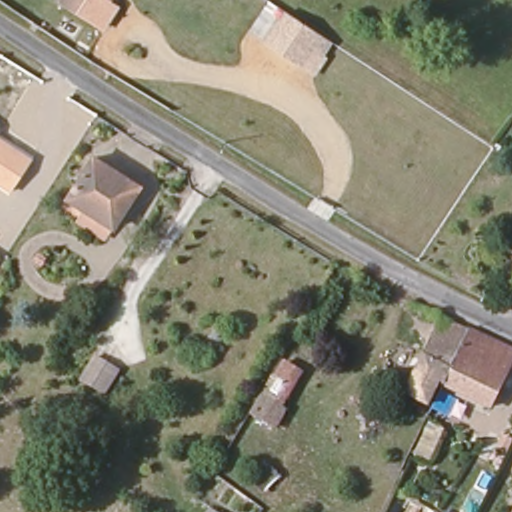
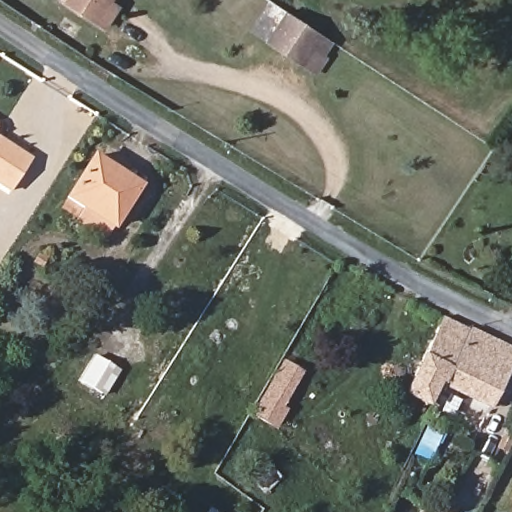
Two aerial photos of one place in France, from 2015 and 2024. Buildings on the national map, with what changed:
unchanged [(107,5),(120,14),(106,31),(62,0),(111,0),(107,5)]
unchanged [(324,37),(305,66),(269,43),(289,15),(324,37)]
unchanged [(32,162),(12,192),(0,183),(0,141),(32,162)]
unchanged [(95,159),(140,188),(115,226),(71,198),(95,159)]
unchanged [(512,297),(512,304),(509,303),(512,297)]
unchanged [(472,328),(447,379),(438,374),(432,383),(432,385),(424,398),(407,388),(444,314),(472,328)]
unchanged [(512,360),(490,402),(447,379),(472,328),(512,346),(512,360)]
unchanged [(95,355),(119,369),(105,393),(81,378),(95,355)]
unchanged [(298,368),(280,404),(287,408),(276,428),(252,412),(260,400),(253,396),(257,388),(263,391),(281,359),(298,368)]

